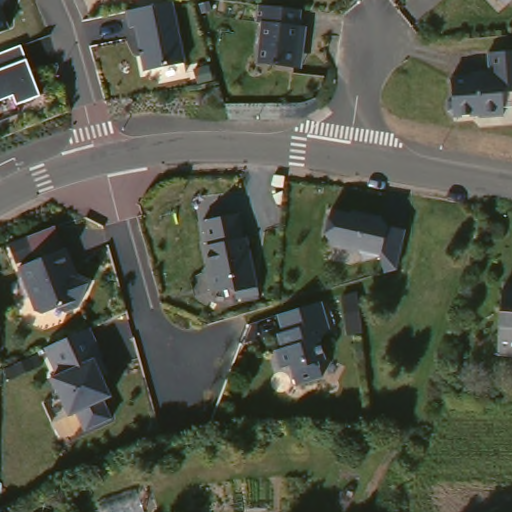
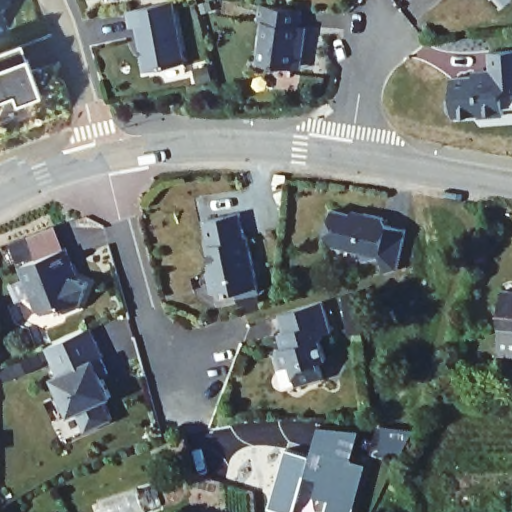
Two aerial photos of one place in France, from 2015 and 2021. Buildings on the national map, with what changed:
unchanged [(11,27),(0,31),(0,0),(3,0),(11,27)]
unchanged [(129,1),(137,0),(180,0),(193,62),(144,69),(129,1)]
unchanged [(299,68),(280,66),(279,66),(276,65),(274,64),(271,62),(269,61),(267,58),(266,56),(265,53),(265,51),(264,47),(267,22),(262,22),(264,5),(290,8),(306,10),(304,26),(311,27),(307,53),(306,69),(299,68)]
unchanged [(17,104),(12,95),(0,99),(0,54),(22,46),(41,95),(17,104)]
unchanged [(512,115),(487,117),(487,115),(462,117),(461,115),(457,111),(456,99),(460,94),(458,77),(497,73),(495,52),(512,50),(512,107),(511,107),(512,115)]
unchanged [(403,262),(393,265),(387,247),(369,252),(365,244),(338,237),(332,227),(337,203),(352,207),(357,204),(360,208),(369,210),(369,207),(389,212),(393,219),(411,222),(403,262)]
unchanged [(259,262),(265,288),(243,292),(242,286),(237,282),(218,286),(213,266),(216,262),(217,260),(213,239),(214,239),(209,215),(246,207),(251,232),(253,231),(259,262)]
unchanged [(43,257),(35,234),(41,232),(64,225),(72,248),(73,247),(79,265),(77,266),(80,276),(95,283),(94,287),(84,306),(70,311),(62,307),(48,312),(41,309),(41,308),(26,264),(43,257)]
new [(343,330),(342,320),(339,301),(338,294),(354,289),(354,300),(357,318),(358,328),(343,330)]
unchanged [(512,356),(507,356),(508,333),(511,290),(512,290),(512,356)]
unchanged [(333,330),(326,332),(322,338),(328,357),(321,360),(325,375),(299,382),(294,363),(284,366),(279,348),(285,346),(281,331),(286,330),(284,322),(281,312),(284,311),(324,299),(333,330)]
unchanged [(92,324),(105,352),(102,353),(110,370),(104,372),(113,392),(105,396),(114,415),(87,427),(79,407),(71,411),(54,374),(60,372),(48,344),(92,324)]
new [(351,460),(365,465),(352,512),(302,512),(277,506),(291,451),(312,456),(319,427),(358,437),(351,460)]

